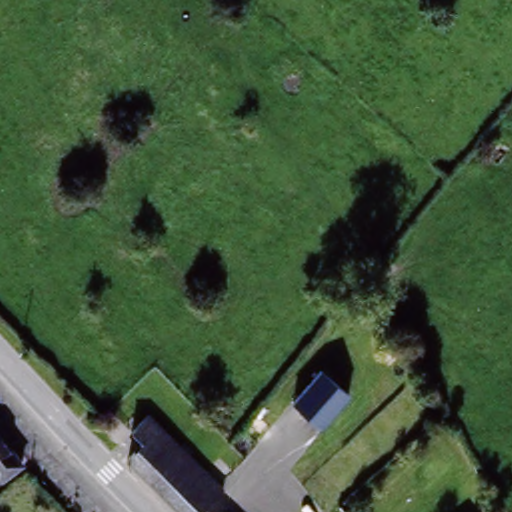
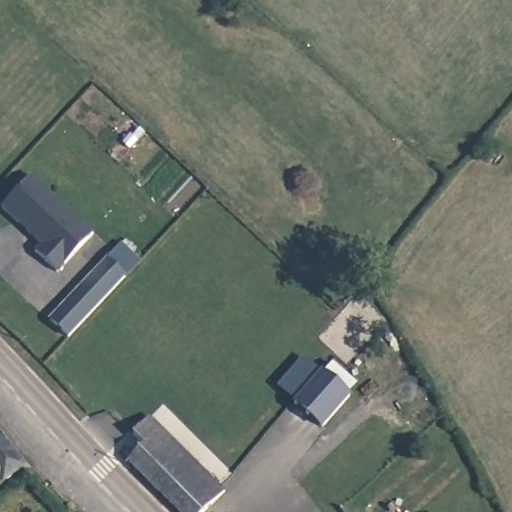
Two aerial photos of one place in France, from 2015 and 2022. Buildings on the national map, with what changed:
new [(99,232),(64,270),(42,250),(49,243),(8,206),(37,175),(99,232)]
new [(112,261),(124,272),(68,332),(56,322),(112,261)]
unchanged [(324,423),(311,412),(295,398),(324,366),(339,380),(351,391),(324,423)]
unchanged [(137,452),(145,444),(134,433),(153,417),(162,427),(208,473),(217,481),(225,488),(212,502),(202,512),(183,512),(130,461),(137,452)]
unchanged [(23,468),(4,485),(0,488),(0,439),(23,468)]

